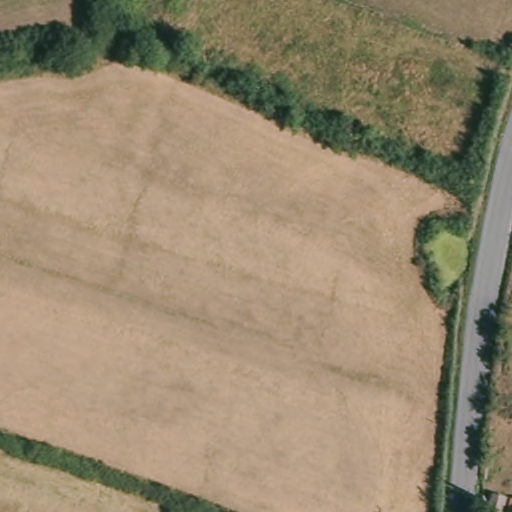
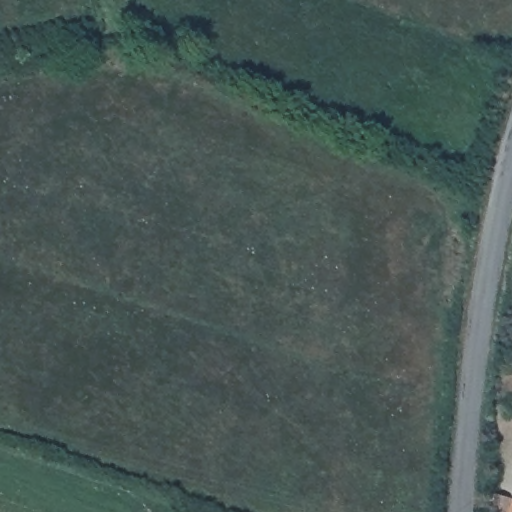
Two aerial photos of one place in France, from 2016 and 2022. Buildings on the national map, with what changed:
unchanged [(495,497),(492,512),(478,512),(481,495),(495,497)]
unchanged [(512,502),(512,512),(497,512),(500,499),(512,502)]

